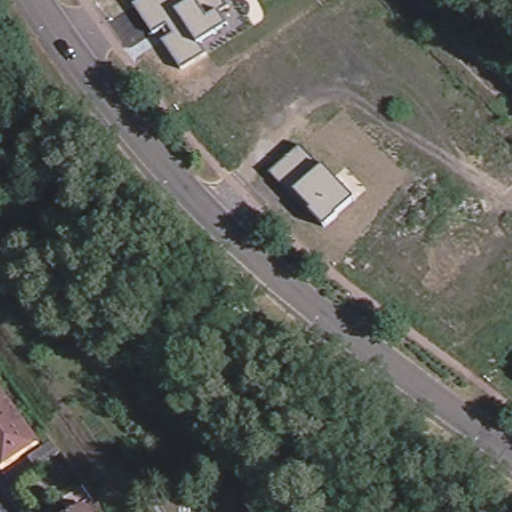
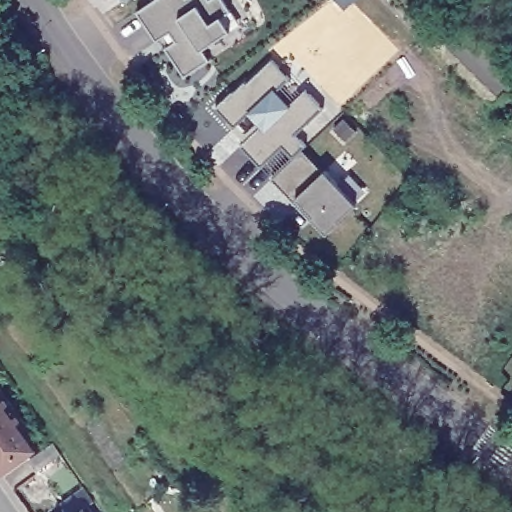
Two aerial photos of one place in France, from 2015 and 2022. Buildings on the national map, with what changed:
unchanged [(125,0),(123,1),(123,0),(125,0)]
unchanged [(165,46),(173,39),(168,30),(154,39),(136,11),(153,0),(208,0),(221,0),(227,9),(218,16),(228,29),(199,48),(207,59),(184,74),(165,46)]
new [(290,77),(305,90),(308,88),(325,108),(296,135),(306,146),(302,150),(279,171),(270,161),(261,168),(241,146),(246,143),(216,107),(273,59),(290,77)]
unchanged [(302,150),(324,171),(355,202),(336,219),(338,221),(326,231),(312,215),(315,213),(297,197),(293,201),(271,178),(302,150)]
unchanged [(5,392),(9,397),(12,401),(7,405),(30,436),(0,457),(0,394),(0,395),(5,392)]
unchanged [(22,451),(43,435),(52,447),(28,463),(5,479),(0,472),(0,462),(19,449),(21,452),(22,451)]
unchanged [(62,502),(82,487),(92,500),(81,508),(83,510),(85,508),(88,512),(69,512),(62,502)]

